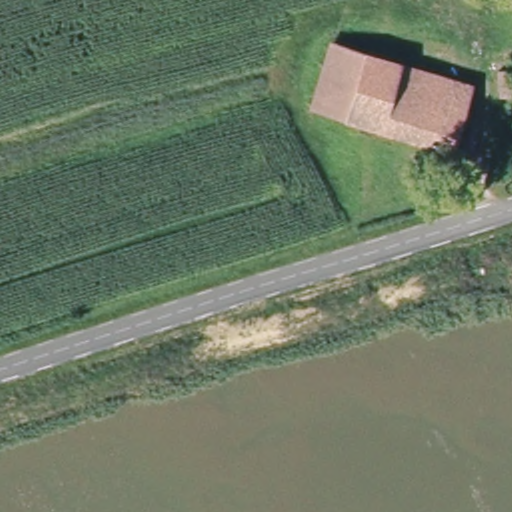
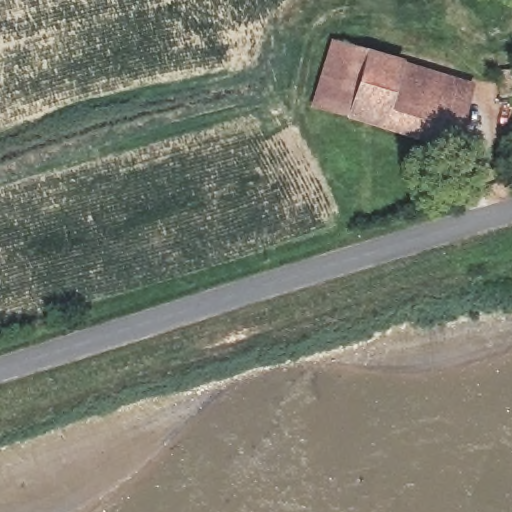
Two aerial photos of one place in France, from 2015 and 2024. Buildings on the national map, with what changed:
unchanged [(314,107),(332,46),(470,89),(452,149),(314,107)]
unchanged [(501,65),(512,65),(512,98),(500,98),(501,65)]

